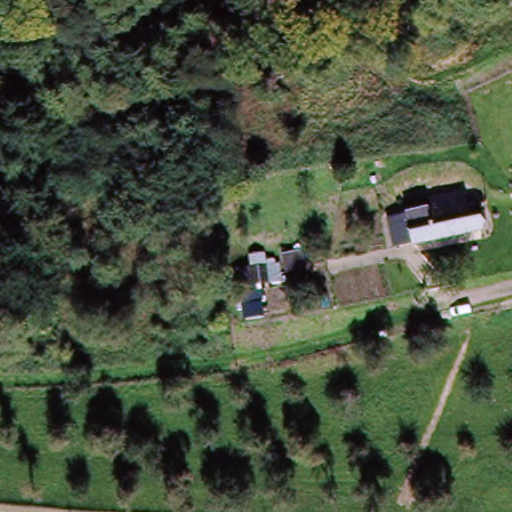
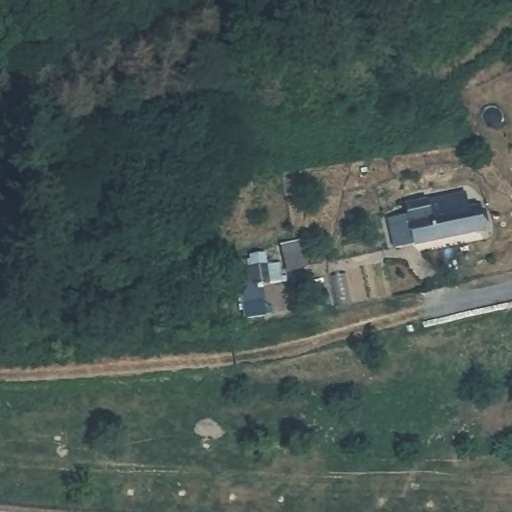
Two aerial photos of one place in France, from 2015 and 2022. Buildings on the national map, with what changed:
unchanged [(456,193),(459,207),(476,204),(481,232),(412,244),(405,202),(456,193)]
unchanged [(266,255),(269,272),(253,273),(251,257),(266,255)]

